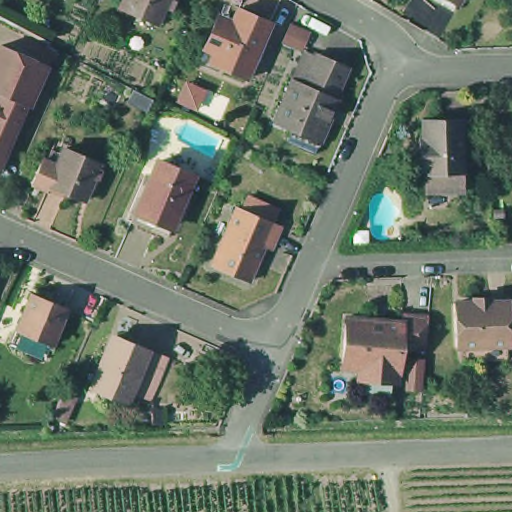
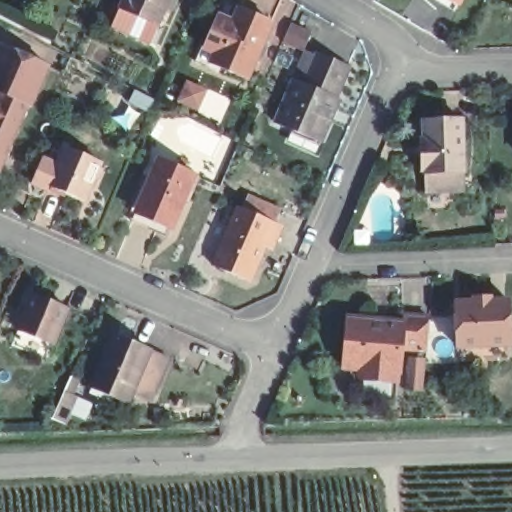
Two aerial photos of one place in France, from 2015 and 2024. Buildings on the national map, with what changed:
unchanged [(163,19),(125,2),(126,0),(171,0),(163,19)]
unchanged [(209,43),(221,17),(223,11),(236,16),(242,3),(276,18),(252,74),(214,58),(205,54),(209,43)]
unchanged [(288,40),(295,23),(310,29),(303,46),(288,40)]
unchanged [(48,69),(30,110),(28,109),(0,96),(0,54),(2,50),(48,69)]
unchanged [(299,130),(279,122),(298,78),(311,50),(321,55),(323,52),(354,65),(341,96),(344,97),(328,137),(326,141),(324,140),(321,150),(295,139),(299,130)]
unchanged [(5,162),(0,173),(0,96),(28,109),(5,162)]
unchanged [(429,189),(428,170),(428,166),(424,166),(423,136),(427,136),(426,117),(464,116),(466,168),(467,187),(429,189)]
unchanged [(61,144),(66,147),(69,141),(108,158),(91,196),(55,180),(56,178),(47,173),(61,144)]
unchanged [(144,213),(147,206),(141,203),(154,175),(160,177),(169,155),(186,162),(188,157),(206,166),(184,217),(179,229),(144,213)]
unchanged [(251,191),(281,203),(274,217),(282,221),(273,243),(266,241),(251,276),(214,260),(239,202),(245,205),(251,191)]
unchanged [(37,290),(70,304),(55,341),(21,326),(37,290)]
unchanged [(464,356),(464,341),(461,341),(458,297),(512,294),(512,304),(512,337),(511,338),(511,354),(464,356)]
unchanged [(364,363),(346,362),(351,312),(406,316),(406,310),(433,312),(430,345),(406,344),(404,366),(401,366),(400,376),(378,374),(364,373),(364,363)]
unchanged [(130,393),(91,378),(102,354),(106,356),(116,330),(149,344),(168,352),(151,393),(133,386),(130,393)]
unchanged [(65,423),(52,417),(63,392),(76,397),(65,423)]

